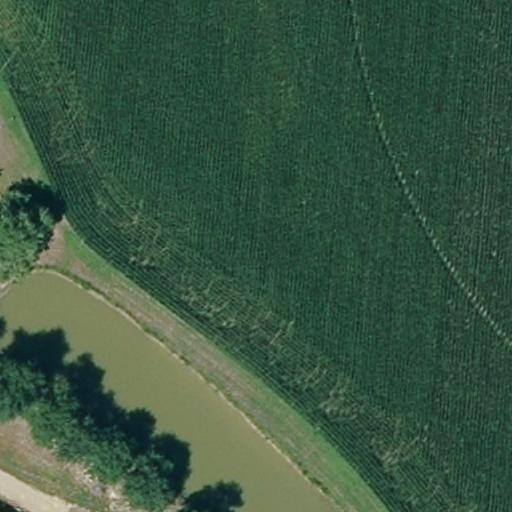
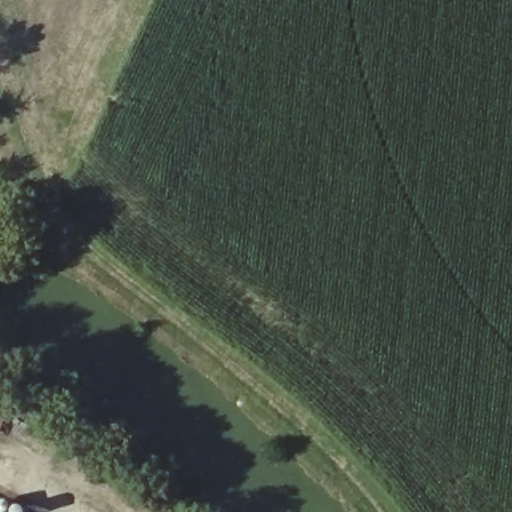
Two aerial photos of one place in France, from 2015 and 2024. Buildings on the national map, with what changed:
[]

